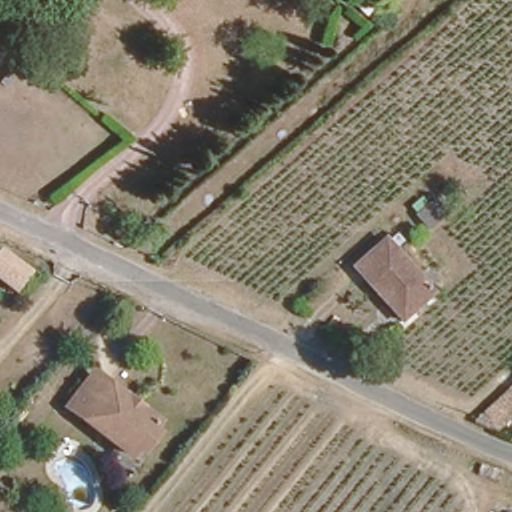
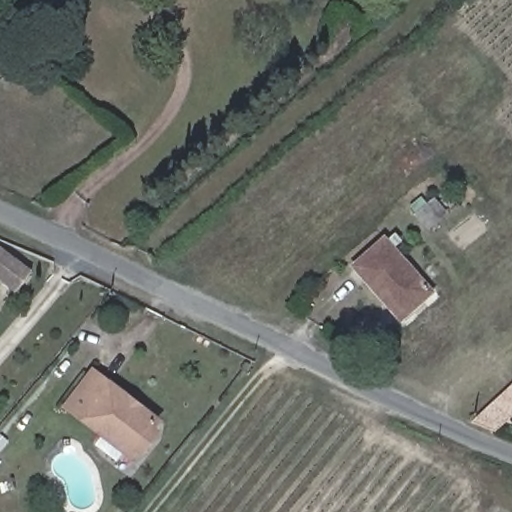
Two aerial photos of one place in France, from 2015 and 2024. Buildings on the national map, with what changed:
unchanged [(446,208),(429,224),(419,212),(436,197),(446,208)]
unchanged [(381,293),(354,263),(387,235),(413,264),(381,293)]
unchanged [(17,288),(0,275),(0,252),(4,246),(32,268),(17,288)]
unchanged [(433,288),(402,317),(381,293),(413,264),(433,288)]
unchanged [(145,448),(138,444),(134,450),(72,403),(95,374),(157,420),(151,427),(158,432),(145,448)]
unchanged [(496,427),(476,418),(512,388),(512,413),(496,427)]

